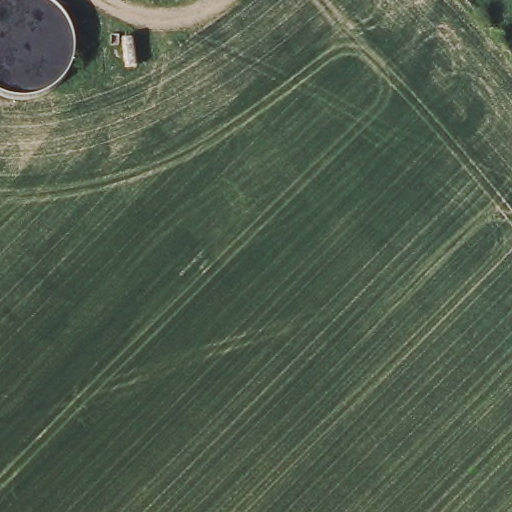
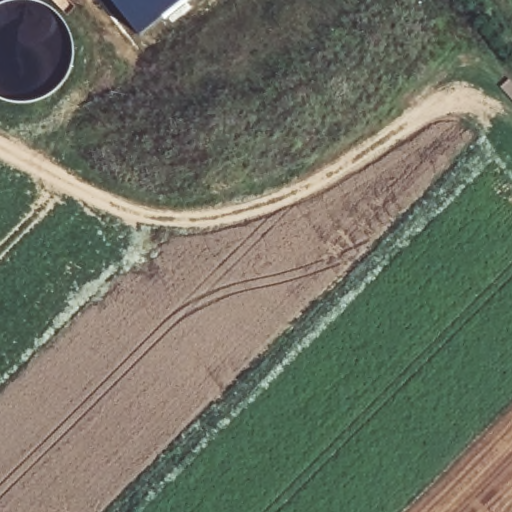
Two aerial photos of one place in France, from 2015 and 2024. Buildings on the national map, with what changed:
new [(140,34),(113,0),(183,0),(140,34)]

